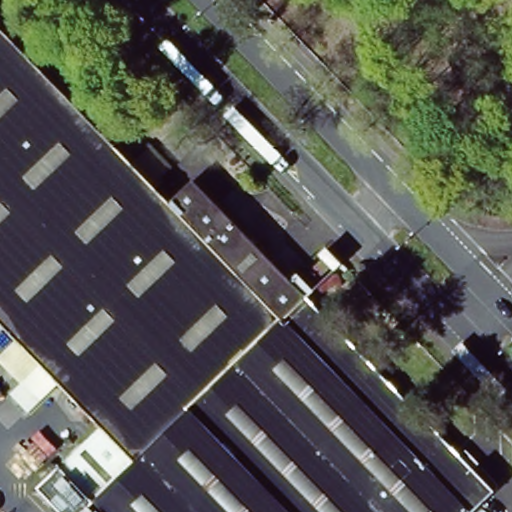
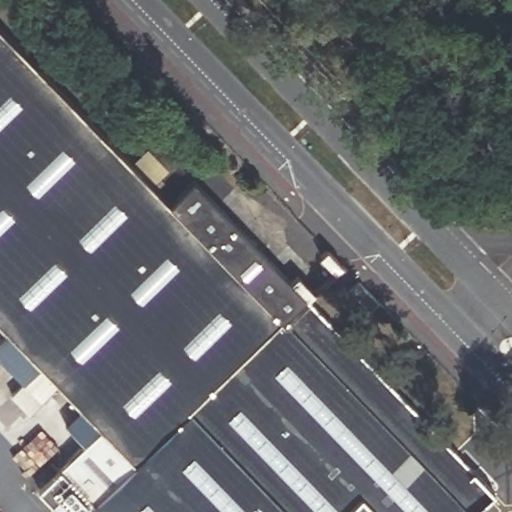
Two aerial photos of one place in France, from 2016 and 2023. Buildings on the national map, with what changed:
unchanged [(0,329),(0,29),(169,204),(192,182),(307,292),(491,490),(469,512),(57,512),(40,489),(62,468),(99,427),(0,329)]

